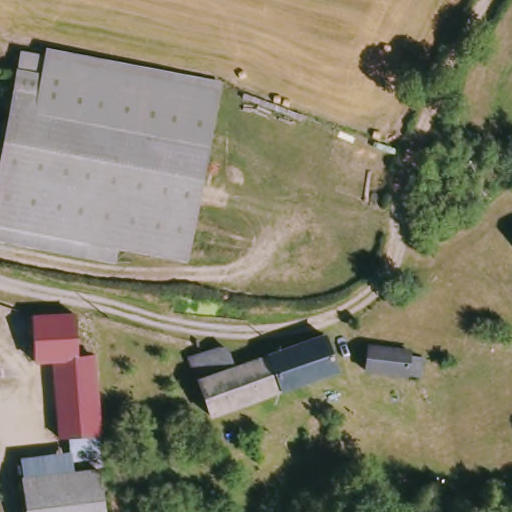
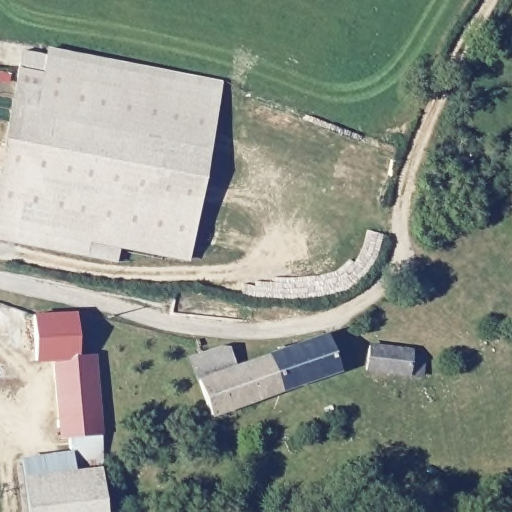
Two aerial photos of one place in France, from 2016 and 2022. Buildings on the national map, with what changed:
unchanged [(216,83),(197,256),(130,246),(128,263),(1,243),(21,74),(44,75),(45,59),(216,83)]
unchanged [(67,437),(56,438),(51,363),(32,364),(30,314),(72,313),(76,354),(94,354),(102,435),(105,473),(79,471),(78,465),(75,451),(68,452),(67,437)]
unchanged [(343,368),(218,418),(192,363),(209,356),(231,347),(243,366),(330,332),(343,368)]
unchanged [(412,343),(410,349),(425,351),(425,354),(422,370),(407,370),(406,374),(366,366),(371,337),(412,343)]
unchanged [(78,465),(79,471),(105,473),(110,512),(31,512),(28,475),(26,458),(75,451),(78,465)]

